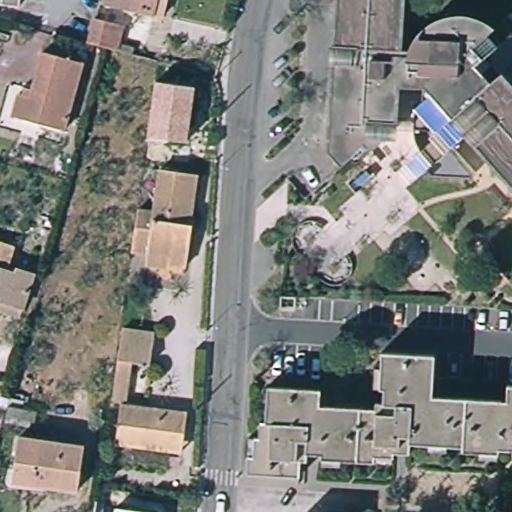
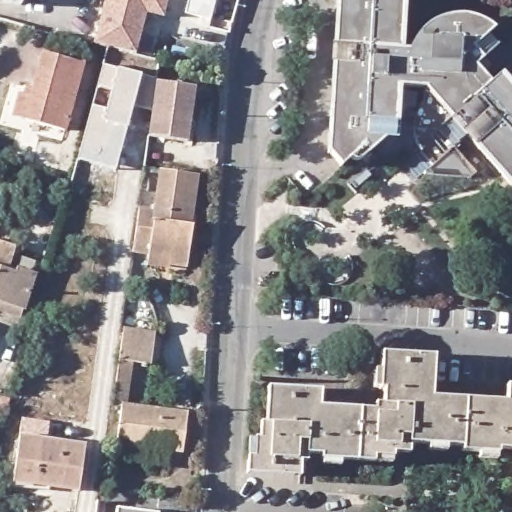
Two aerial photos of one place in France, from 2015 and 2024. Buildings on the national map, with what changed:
unchanged [(30,3),(14,2),(14,0),(30,0),(30,3)]
unchanged [(168,22),(108,8),(109,0),(173,0),(168,22)]
unchanged [(399,47),(407,48),(409,44),(410,42),(413,39),(415,34),(420,29),(426,24),(434,20),(442,17),(447,15),(452,14),(456,13),(462,14),(467,14),(472,16),(479,19),(485,22),(492,27),(487,32),(497,43),(475,64),(489,81),(498,73),(512,89),(512,186),(465,134),(452,146),(475,170),(470,176),(423,173),(432,164),(429,161),(424,155),(419,147),(415,139),(414,133),(413,126),(414,119),(415,113),(415,110),(421,102),(423,100),(424,87),(397,85),(394,127),(361,158),(360,159),(358,159),(355,159),(354,158),(350,156),(341,164),(329,151),(334,63),(337,0),(402,0),(399,47)]
unchanged [(131,25),(124,49),(116,46),(98,41),(104,17),(131,25)]
unchanged [(33,89),(44,51),(83,62),(64,129),(13,115),(19,93),(24,95),(27,87),(33,89)]
new [(117,68),(142,74),(142,77),(157,82),(153,112),(133,107),(126,130),(115,169),(77,160),(103,65),(117,68)]
unchanged [(149,137),(157,82),(195,87),(188,141),(149,137)]
unchanged [(153,253),(137,250),(143,207),(159,209),(165,168),(202,173),(194,223),(197,225),(191,265),(175,263),(152,259),(153,253)]
unchanged [(0,309),(0,240),(21,246),(13,269),(21,271),(24,266),(40,272),(29,307),(25,317),(0,309)]
unchanged [(174,445),(116,437),(121,399),(112,398),(123,322),(154,326),(150,357),(132,355),(126,397),(187,406),(184,432),(182,446),(174,445)]
unchanged [(507,451),(472,449),(472,445),(419,442),(419,451),(403,450),(402,455),(383,454),(382,459),(332,457),(332,453),(317,452),(316,458),(311,458),(309,474),(257,471),(258,454),(264,455),(265,435),(270,435),(271,421),(276,421),(279,385),(330,388),(329,404),(384,408),(384,402),(393,402),(393,388),(390,387),(390,351),(443,354),(442,395),(512,399),(512,447),(507,447),(507,451)]
unchanged [(34,425),(6,420),(9,404),(37,409),(34,425)]
unchanged [(13,474),(19,434),(84,444),(77,489),(35,483),(12,480),(13,474)]
unchanged [(124,512),(120,512),(120,511),(124,512)]
unchanged [(512,511),(512,512),(509,512),(509,511),(512,511)]

